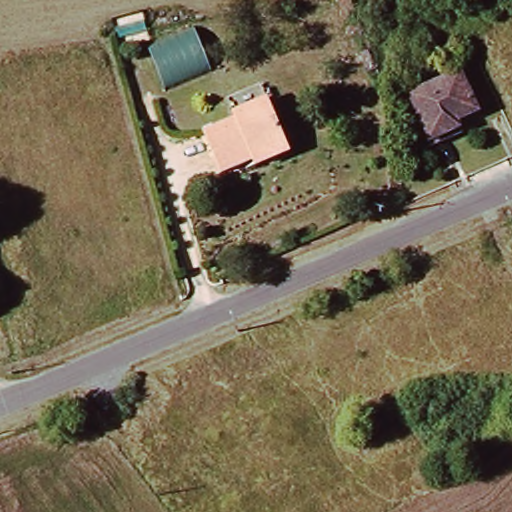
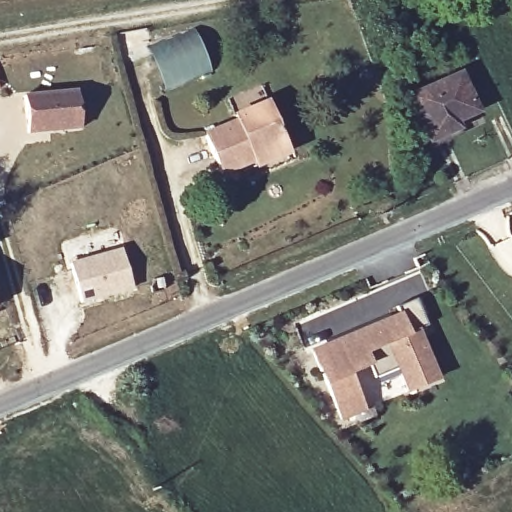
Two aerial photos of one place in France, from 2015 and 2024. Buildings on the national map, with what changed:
unchanged [(150,39),(198,22),(215,69),(169,88),(150,39)]
unchanged [(458,74),(474,110),(453,119),(457,129),(427,142),(407,97),(458,74)]
new [(76,91),(78,128),(25,132),(23,95),(76,91)]
unchanged [(255,166),(253,161),(220,174),(204,135),(235,122),(233,116),(267,102),(283,142),(288,153),(255,166)]
new [(120,251),(130,290),(78,303),(68,265),(120,251)]
new [(426,325),(420,328),(440,378),(406,392),(396,369),(376,378),(371,366),(352,374),(366,410),(340,421),(310,350),(401,312),(400,305),(415,299),(426,325)]

